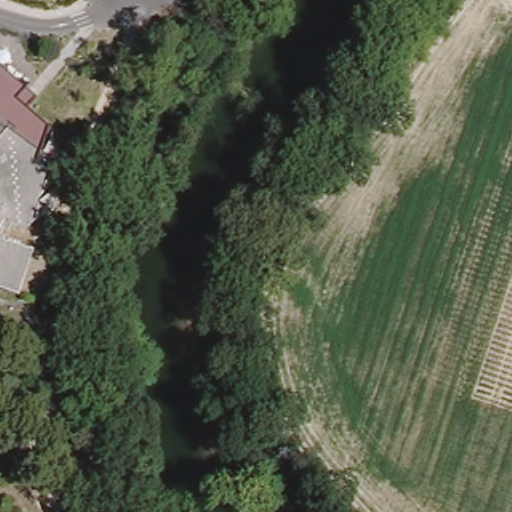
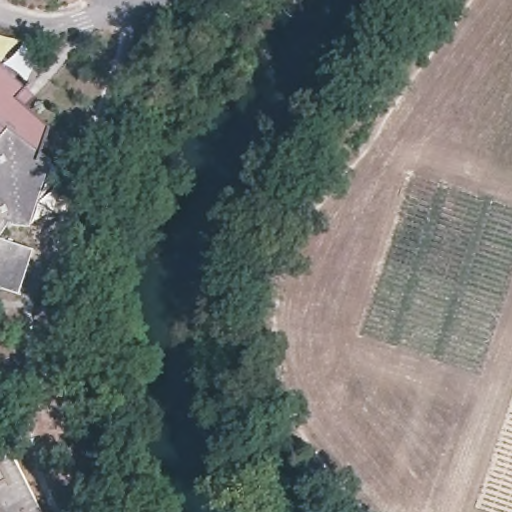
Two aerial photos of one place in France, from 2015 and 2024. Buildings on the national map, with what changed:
unchanged [(27,107),(51,128),(43,147),(9,123),(0,134),(0,63),(36,94),(27,107)]
unchanged [(46,149),(33,223),(9,219),(4,235),(35,244),(23,293),(0,288),(0,134),(9,123),(46,149)]
new [(42,512),(3,512),(0,506),(0,476),(0,474),(0,453),(13,457),(42,512)]
unchanged [(0,506),(3,512),(0,512),(0,506)]

